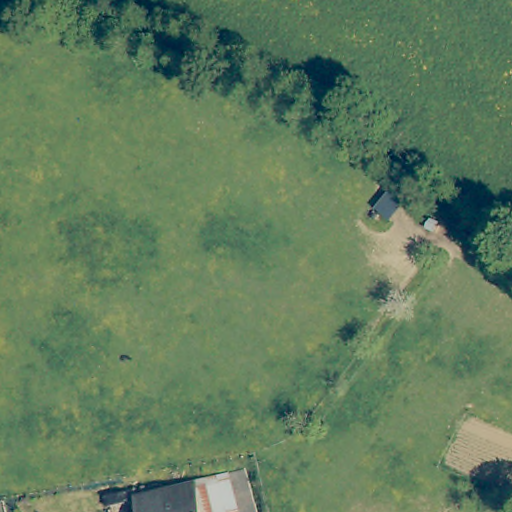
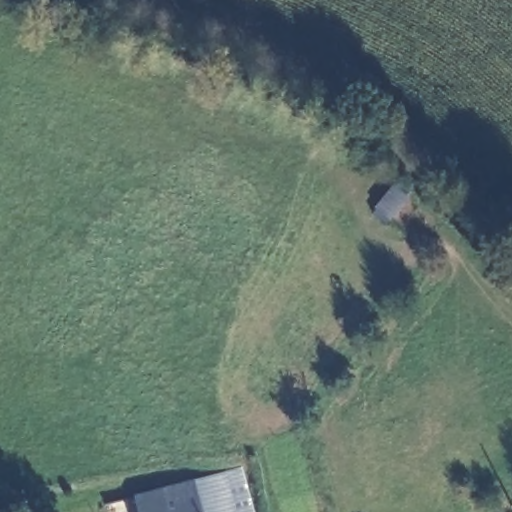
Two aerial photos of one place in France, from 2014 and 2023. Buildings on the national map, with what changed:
unchanged [(244,512),(210,512),(200,477),(209,476),(233,471),(244,512)]
unchanged [(198,478),(200,477),(210,512),(146,512),(141,494),(198,478)]

